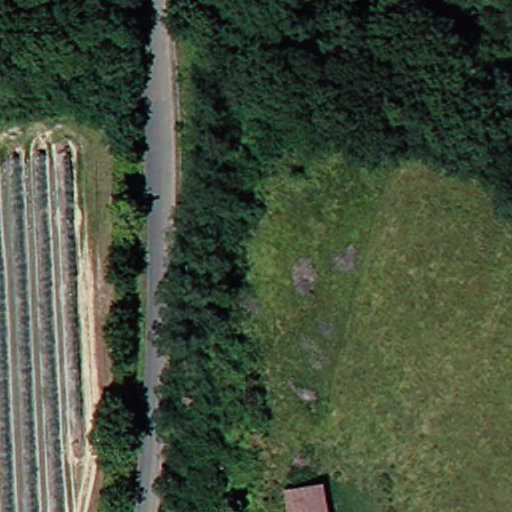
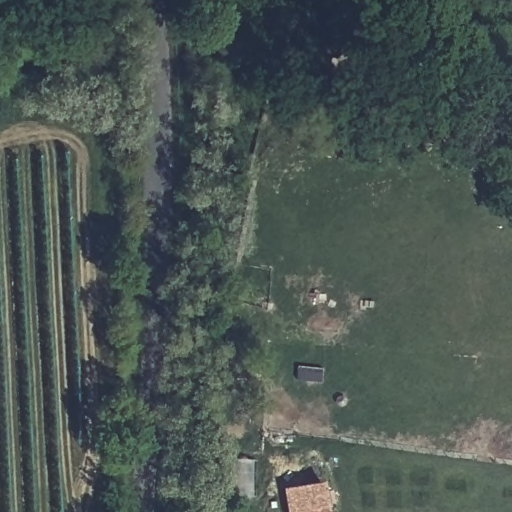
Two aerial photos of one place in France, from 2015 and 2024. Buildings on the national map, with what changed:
unchanged [(319,482),(325,512),(282,512),(278,489),(319,482)]

